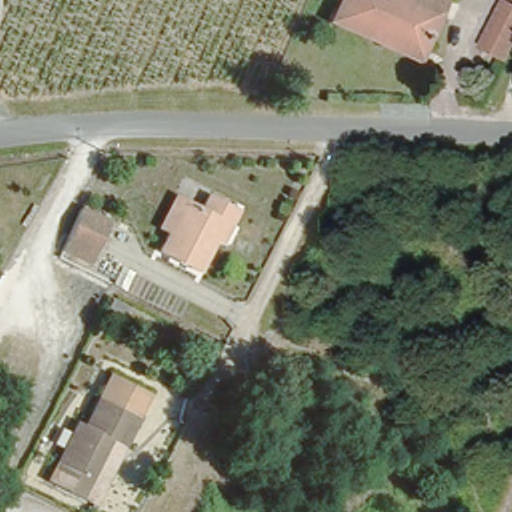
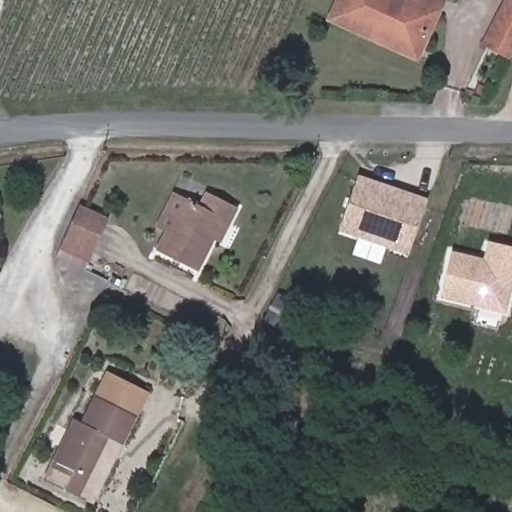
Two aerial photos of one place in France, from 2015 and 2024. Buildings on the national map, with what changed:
unchanged [(332,19),(340,0),(440,0),(420,47),(416,55),(366,34),(332,19)]
unchanged [(509,5),(512,0),(512,48),(486,35),(502,2),(509,5)]
new [(422,199),(405,251),(335,229),(352,175),(422,199)]
unchanged [(211,235),(196,265),(155,245),(161,234),(152,229),(171,191),(181,196),(198,205),(207,188),(237,205),(230,220),(221,240),(211,235)]
unchanged [(61,246),(66,235),(79,204),(107,216),(94,245),(89,258),(61,246)]
new [(382,245),(376,264),(347,254),(353,235),(382,245)]
new [(486,240),(512,246),(512,268),(502,310),(437,295),(447,252),(481,260),(486,240)]
unchanged [(123,436),(115,433),(85,497),(49,479),(79,416),(87,420),(111,368),(146,387),(123,436)]

